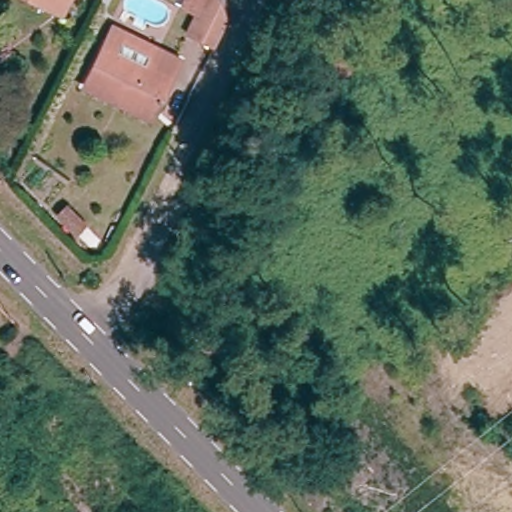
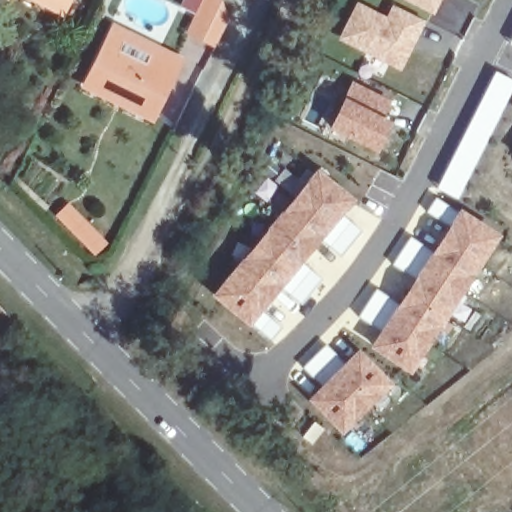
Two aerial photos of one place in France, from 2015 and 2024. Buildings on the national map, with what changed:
unchanged [(61,12),(38,0),(67,0),(61,12)]
unchanged [(184,29),(198,0),(215,0),(222,19),(210,43),(184,29)]
new [(356,0),(385,14),(391,3),(426,20),(400,71),(335,39),(356,0)]
new [(433,15),(400,0),(440,0),(433,15)]
new [(509,43),(512,38),(512,45),(509,43)]
unchanged [(116,100),(85,84),(105,43),(145,63),(154,49),(179,61),(156,108),(151,118),(116,100)]
new [(495,70),(512,79),(512,93),(479,161),(457,199),(436,187),(495,70)]
new [(390,102),(383,116),(391,121),(376,151),(326,127),(343,97),(353,82),(390,102)]
new [(355,201),(343,214),(361,230),(341,256),(324,239),(302,263),(322,279),(300,304),(280,290),(263,310),(284,328),(271,344),(248,326),(209,295),(316,168),(355,201)]
new [(457,209),(501,235),(412,374),(369,348),(384,325),(358,317),(376,291),(396,304),(415,278),(390,266),(410,236),(435,248),(451,223),(426,211),(436,197),(457,209)]
new [(341,364),(357,349),(393,383),(341,434),(306,400),(320,385),(302,369),(325,348),(341,364)]

